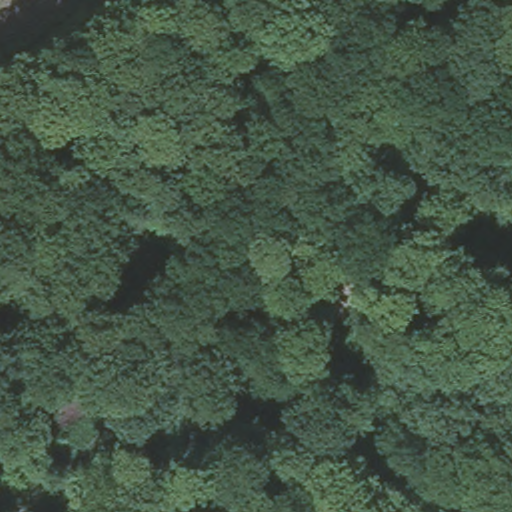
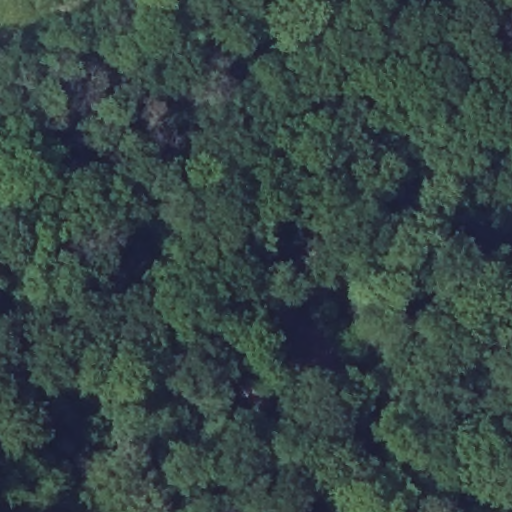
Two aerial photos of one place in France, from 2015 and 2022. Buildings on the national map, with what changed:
unchanged [(359,369),(379,328),(420,351),(400,389),(364,371),(359,369)]

